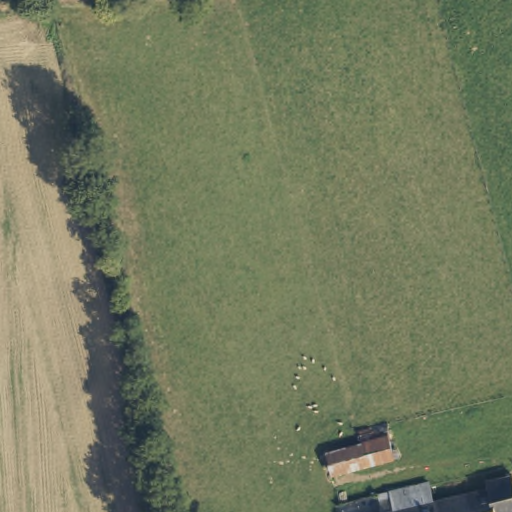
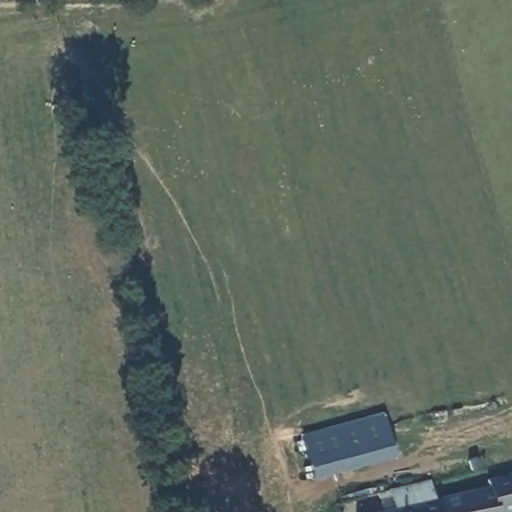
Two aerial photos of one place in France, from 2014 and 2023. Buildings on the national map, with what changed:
new [(313,481),(301,436),(382,413),(395,459),(313,481)]
unchanged [(432,501),(465,493),(486,488),(484,482),(509,476),(512,491),(512,512),(434,512),(432,501)]
unchanged [(434,512),(391,512),(395,511),(391,494),(429,485),(432,501),(434,512)]

